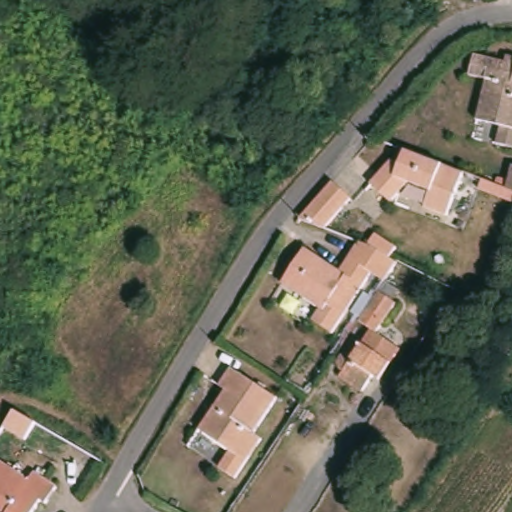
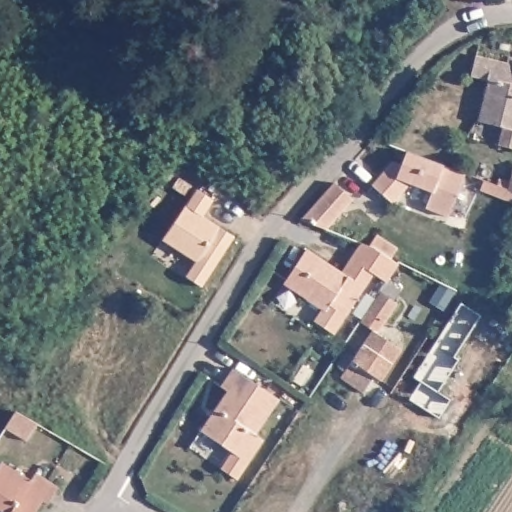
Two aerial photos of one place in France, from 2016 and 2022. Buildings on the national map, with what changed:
unchanged [(478,120),(488,78),(471,74),(476,54),(507,61),(508,55),(512,56),(512,128),(478,120)]
unchanged [(427,158),(461,171),(444,215),(421,206),(428,190),(406,181),(388,201),(368,183),(388,159),(397,162),(402,149),(427,158)]
unchanged [(512,171),(512,189),(508,188),(512,171)]
unchanged [(353,197),(326,227),(301,218),(335,180),(353,197)]
new [(198,187),(213,197),(203,214),(234,234),(201,284),(187,275),(197,260),(164,238),(198,187)]
unchanged [(364,286),(334,332),(314,320),(322,307),(284,282),(306,247),(342,271),(362,241),(370,245),(377,233),(396,246),(391,257),(398,261),(386,280),(373,272),(364,286)]
unchanged [(344,371),(339,367),(338,365),(337,363),(338,360),(342,353),(345,352),(347,352),(349,352),(354,355),(372,328),(359,320),(379,290),(397,302),(377,331),(401,348),(380,379),(374,375),(363,391),(340,376),(344,371)]
unchanged [(228,390),(221,385),(234,367),(279,398),(255,433),(263,439),(247,461),(236,478),(220,467),(231,450),(200,429),(228,390)]
unchanged [(35,471),(58,486),(47,503),(42,500),(34,512),(4,512),(0,509),(0,463),(1,461),(30,479),(35,471)]

